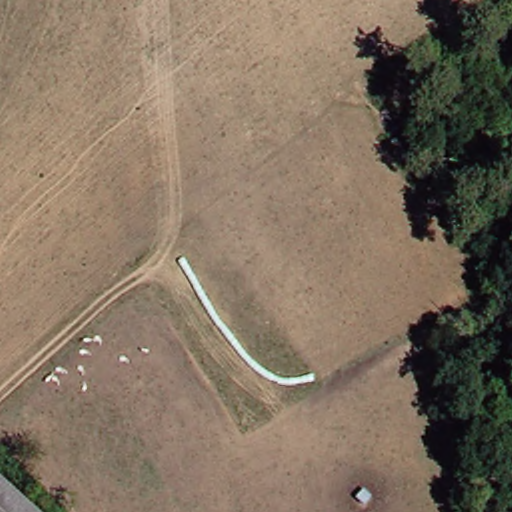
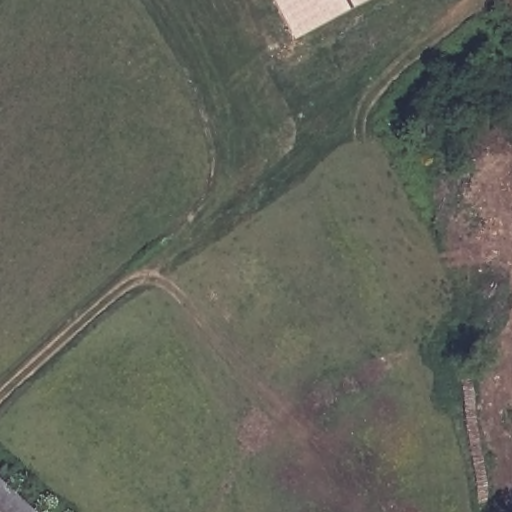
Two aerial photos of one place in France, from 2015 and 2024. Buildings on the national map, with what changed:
new [(371,0),(295,40),(274,0),(371,0)]
unchanged [(0,492),(22,512),(0,512),(0,492)]

